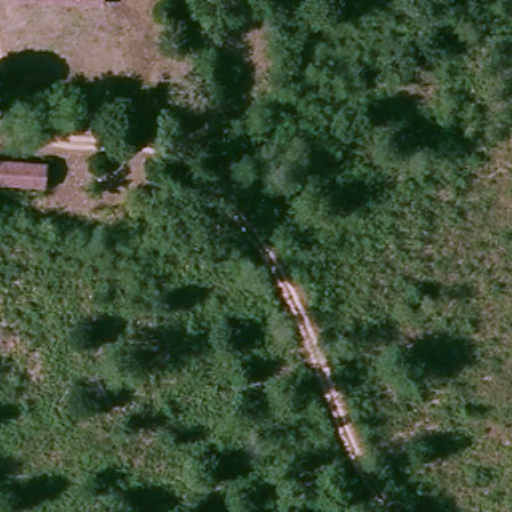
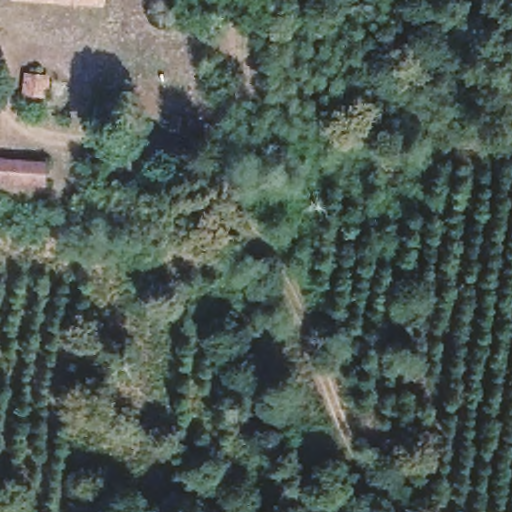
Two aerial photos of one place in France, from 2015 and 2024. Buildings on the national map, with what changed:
unchanged [(105,6),(91,5),(31,0),(106,0),(105,6)]
unchanged [(47,77),(46,100),(25,99),(26,76),(47,77)]
unchanged [(0,161),(48,164),(48,186),(0,182),(0,161)]

